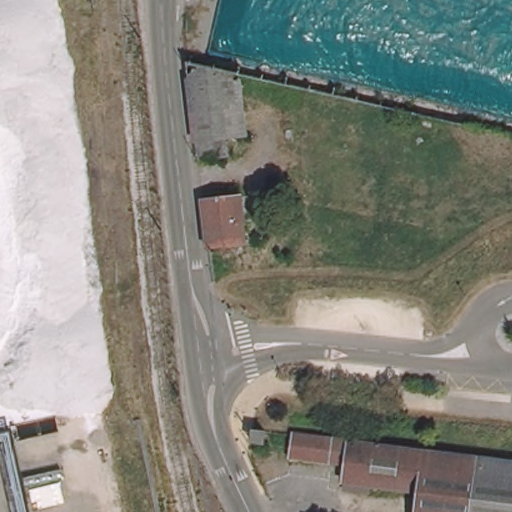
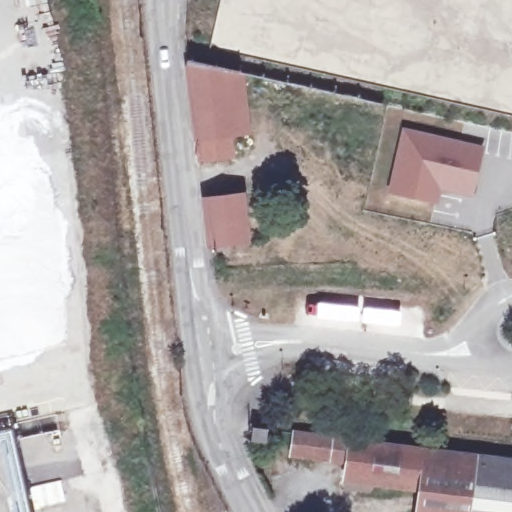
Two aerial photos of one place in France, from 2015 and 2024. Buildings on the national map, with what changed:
unchanged [(230,159),(197,157),(185,59),(238,69),(225,147),(230,159)]
new [(485,147),(474,197),(442,189),(438,206),(387,194),(403,129),(485,147)]
unchanged [(245,202),(249,240),(212,243),(207,203),(245,202)]
unchanged [(258,437),(260,425),(273,427),(272,439),(258,437)]
unchanged [(343,473),(346,456),(296,448),(297,430),(327,435),(327,437),(352,441),(352,438),(512,462),(512,512),(419,512),(422,486),(343,473)]

